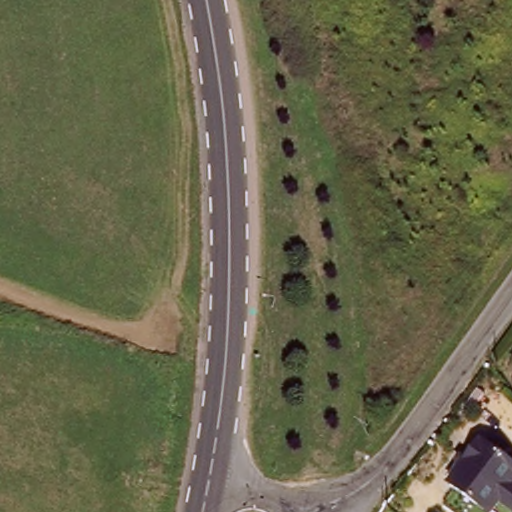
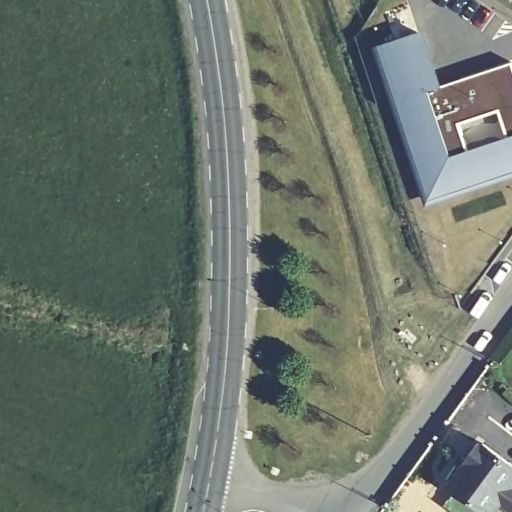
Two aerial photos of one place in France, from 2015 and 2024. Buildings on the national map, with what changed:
new [(389,12),(412,5),(441,88),(512,64),(512,173),(434,200),(402,102),(395,104),(376,48),(398,41),(389,12)]
new [(434,200),(512,173),(512,180),(430,207),(395,104),(402,102),(434,200)]
unchanged [(493,510),(458,484),(488,443),(512,461),(512,507),(501,498),(493,510)]

